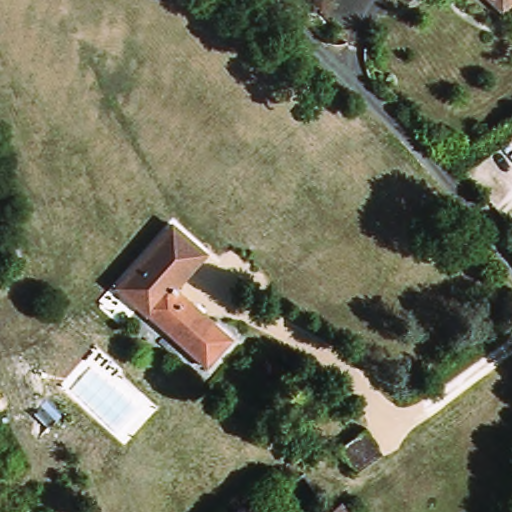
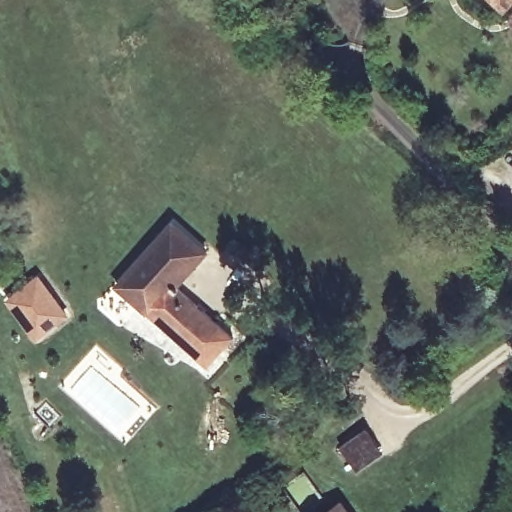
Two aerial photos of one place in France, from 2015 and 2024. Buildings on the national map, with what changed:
unchanged [(478,0),(512,0),(492,17),(478,0)]
unchanged [(234,342),(207,369),(121,284),(180,224),(211,255),(180,287),(234,342)]
new [(39,275),(71,317),(36,343),(5,301),(39,275)]
unchanged [(334,478),(322,461),(347,443),(359,459),(334,478)]

